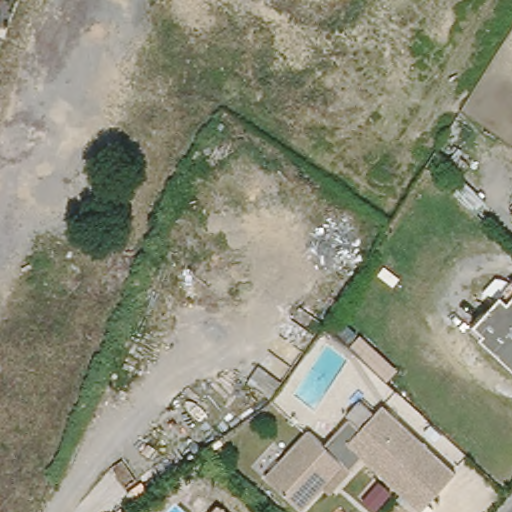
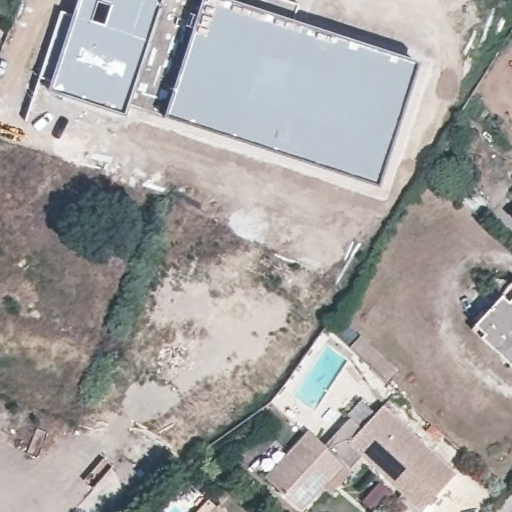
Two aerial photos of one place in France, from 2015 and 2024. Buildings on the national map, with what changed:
new [(50,83),(72,14),(76,0),(163,0),(137,84),(125,117),(47,90),(50,83)]
new [(164,117),(130,105),(137,84),(163,0),(202,0),(164,117)]
new [(202,0),(229,0),(416,62),(376,184),(164,117),(202,0)]
new [(298,6),(293,21),(229,0),(282,0),(298,6)]
unchanged [(471,330),(512,287),(512,366),(471,330)]
new [(333,311),(386,361),(375,372),(325,325),(333,311)]
unchanged [(325,478),(301,504),(273,478),(267,471),(289,447),(309,425),(327,440),(351,413),(362,423),(383,401),(456,468),(423,505),(363,448),(350,463),(330,483),(325,478)]
unchanged [(222,512),(215,512),(218,509),(222,512)]

